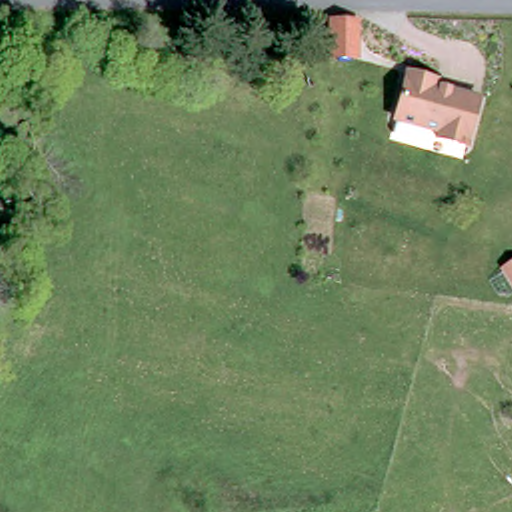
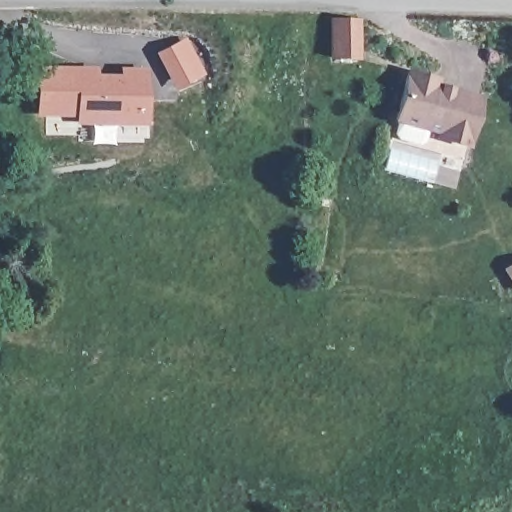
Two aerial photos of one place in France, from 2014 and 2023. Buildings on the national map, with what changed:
new [(334,21),(360,23),(357,56),(332,54),(334,21)]
new [(189,36),(207,73),(175,91),(156,52),(189,36)]
new [(131,118),(84,117),(84,110),(43,109),(45,68),(86,68),(100,69),(100,76),(130,76),(130,69),(150,69),(150,105),(150,118),(131,118)]
unchanged [(437,84),(435,90),(480,100),(468,149),(438,141),(440,135),(397,125),(407,76),(437,84)]
unchanged [(512,269),(512,288),(503,275),(512,269)]

